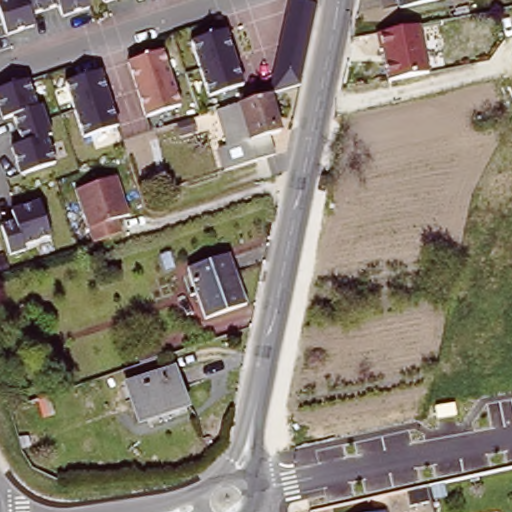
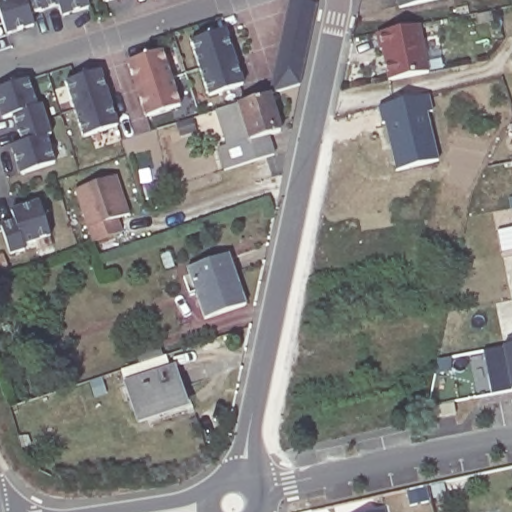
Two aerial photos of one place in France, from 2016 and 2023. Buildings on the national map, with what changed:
unchanged [(32,18),(35,28),(7,37),(0,14),(0,2),(7,0),(41,0),(45,13),(32,18)]
unchanged [(41,0),(87,0),(90,10),(62,19),(60,8),(45,13),(41,0)]
unchanged [(105,5),(103,0),(121,0),(105,5)]
unchanged [(277,63),(279,50),(282,37),(285,24),(287,10),(290,0),(307,0),(317,2),(314,16),(312,29),(308,42),(305,56),(302,69),(300,82),(270,91),(277,63)]
unchanged [(400,6),(398,0),(429,0),(400,6)]
unchanged [(430,73),(390,82),(378,33),(420,24),(430,73)]
unchanged [(202,66),(192,39),(226,28),(227,28),(236,55),(202,66)]
unchanged [(130,60),(164,48),(173,76),(138,87),(130,60)]
unchanged [(245,82),(243,83),(210,94),(202,66),(236,55),(245,82)]
unchanged [(77,108),(67,80),(100,69),(102,69),(112,96),(77,108)]
unchanged [(173,76),(182,103),(148,114),(147,115),(138,87),(173,76)]
unchanged [(25,79),(33,105),(38,103),(42,118),(24,125),(15,128),(10,114),(0,117),(0,86),(24,78),(25,79)]
unchanged [(268,134),(275,153),(226,169),(218,148),(227,144),(217,110),(233,104),(269,92),(282,130),(268,134)]
new [(397,171),(385,124),(382,124),(378,107),(430,93),(434,111),(427,113),(439,161),(397,171)]
unchanged [(122,123),(120,123),(85,135),(77,108),(112,96),(122,123)]
unchanged [(24,125),(42,118),(47,133),(43,135),(52,162),(17,173),(8,145),(19,142),(15,128),(24,125)]
unchanged [(119,221),(122,234),(93,243),(78,191),(120,179),(131,217),(119,221)]
unchanged [(3,224),(17,220),(13,209),(42,201),(52,235),(25,243),(27,248),(12,253),(3,224)]
unchanged [(205,316),(188,266),(228,253),(243,303),(205,316)]
new [(512,344),(512,389),(503,345),(512,344)]
unchanged [(138,421),(125,384),(175,369),(187,405),(138,421)]
unchanged [(377,512),(359,512),(376,508),(377,512)]

